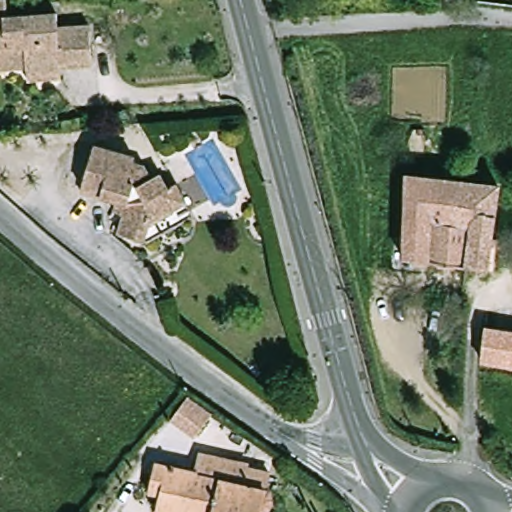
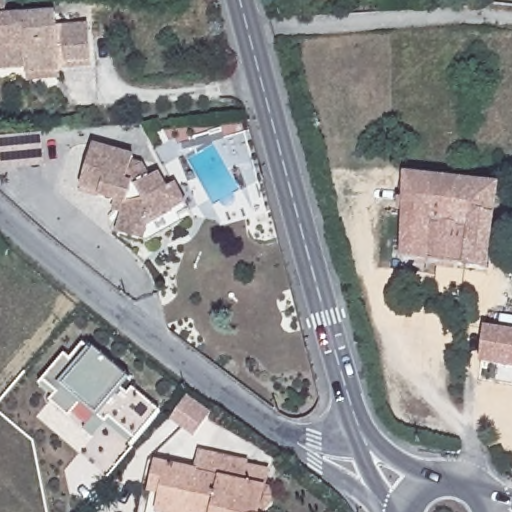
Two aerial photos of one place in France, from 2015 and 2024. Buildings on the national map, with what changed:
unchanged [(24,74),(23,69),(0,72),(0,0),(5,0),(6,19),(58,14),(59,29),(90,26),(93,59),(93,69),(63,71),(63,80),(25,84),(24,74)]
new [(38,164),(8,167),(0,168),(0,138),(4,138),(34,134),(38,164)]
unchanged [(80,192),(93,146),(133,158),(131,163),(141,166),(146,165),(153,179),(161,175),(166,187),(177,183),(186,203),(149,224),(143,240),(118,233),(126,205),(80,192)]
unchanged [(497,187),(487,269),(400,259),(406,176),(497,187)]
unchanged [(480,360),(485,329),(512,334),(512,365),(480,360)]
new [(71,361),(84,347),(91,353),(94,349),(132,382),(124,392),(128,395),(133,389),(161,414),(132,446),(106,424),(94,439),(85,431),(98,419),(82,407),(70,418),(51,402),(54,398),(40,386),(65,356),(71,361)]
unchanged [(198,438),(173,420),(188,399),(213,416),(198,438)]
unchanged [(191,501),(191,503),(162,497),(165,484),(152,482),(158,452),(201,461),(206,442),(252,453),(251,457),(274,462),(271,477),(275,478),(276,481),(276,486),(275,493),(273,499),(271,502),(269,503),(264,502),(263,507),(268,508),(271,511),(273,512),(239,512),(191,501)]

